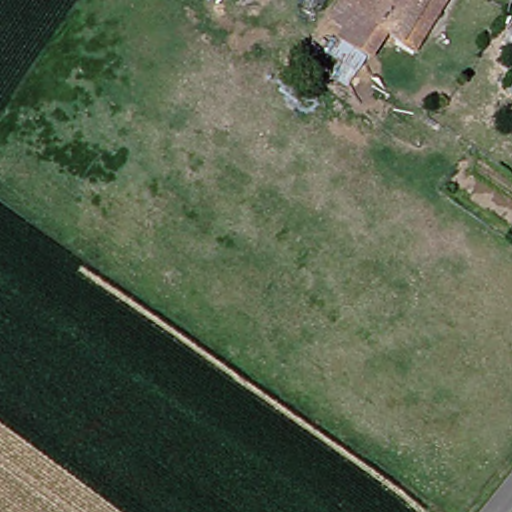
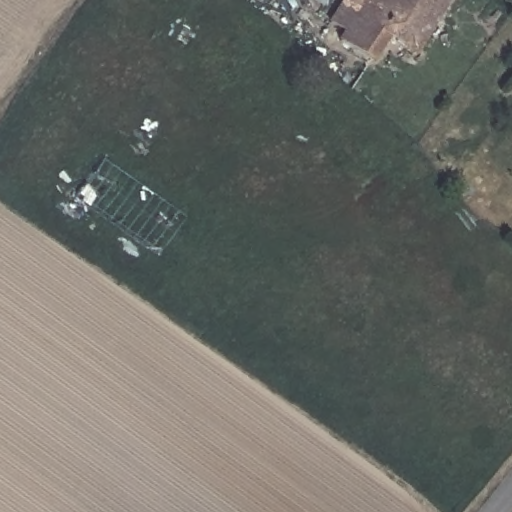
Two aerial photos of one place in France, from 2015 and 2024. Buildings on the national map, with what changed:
unchanged [(368,56),(340,41),(316,27),(335,0),(426,0),(397,49),(380,37),(373,47),(368,56)]
unchanged [(397,49),(426,0),(442,0),(410,56),(397,49)]
unchanged [(363,84),(327,59),(340,41),(368,56),(373,47),(385,56),(379,63),(363,84)]

